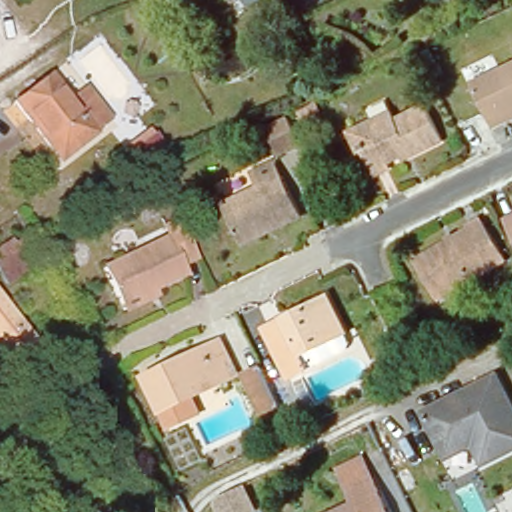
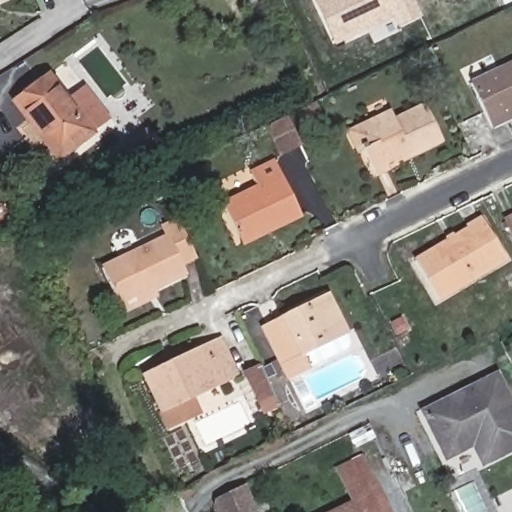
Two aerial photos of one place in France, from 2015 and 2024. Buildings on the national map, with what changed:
new [(10,0),(0,5),(0,0),(10,0)]
new [(397,29),(392,18),(335,46),(311,0),(412,0),(420,16),(397,29)]
unchanged [(468,87),(512,66),(512,120),(490,130),(468,87)]
unchanged [(97,130),(63,158),(15,103),(50,73),(97,130)]
unchanged [(293,143),(273,152),(259,123),(280,113),(293,143)]
unchanged [(344,136),(380,118),(385,126),(418,113),(433,145),(363,177),(344,136)]
unchanged [(230,242),(218,214),(251,198),(245,183),(269,170),(295,224),(265,238),(235,252),(230,242)]
unchanged [(415,253),(481,213),(506,254),(440,294),(415,253)]
unchanged [(512,223),(512,236),(506,225),(512,223)]
unchanged [(124,309),(120,300),(102,263),(165,232),(183,270),(153,284),(157,293),(124,309)]
unchanged [(5,287),(0,281),(0,249),(11,240),(31,265),(5,287)]
unchanged [(343,332),(345,343),(342,349),(303,366),(284,374),(260,326),(326,296),(343,332)]
unchanged [(0,352),(0,302),(38,350),(15,369),(0,352)]
unchanged [(151,407),(136,373),(200,345),(215,338),(224,359),(230,374),(151,407)]
unchanged [(257,414),(257,412),(240,372),(260,365),(277,405),(257,414)]
unchanged [(420,412),(491,375),(512,418),(512,447),(477,463),(468,443),(441,455),(437,447),(420,412)]
unchanged [(341,492),(368,478),(385,512),(334,512),(347,505),(341,492)]
unchanged [(243,488),(254,511),(252,512),(221,512),(216,502),(243,488)]

